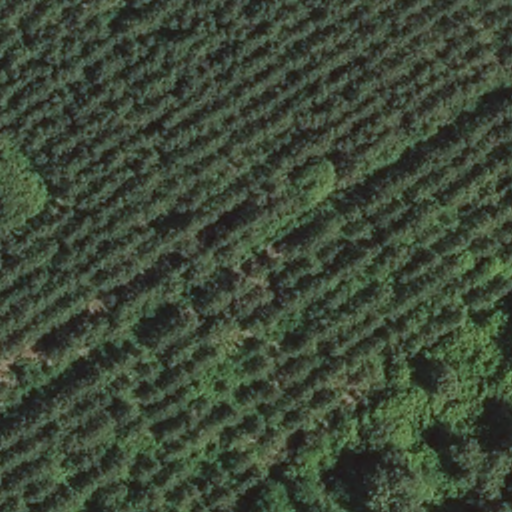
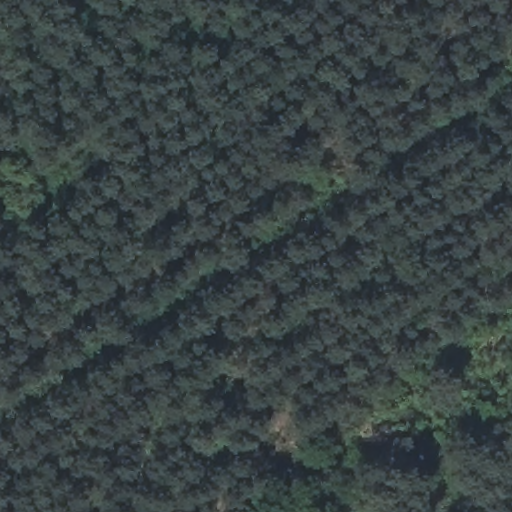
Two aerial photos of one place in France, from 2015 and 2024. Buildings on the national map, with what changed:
[]

